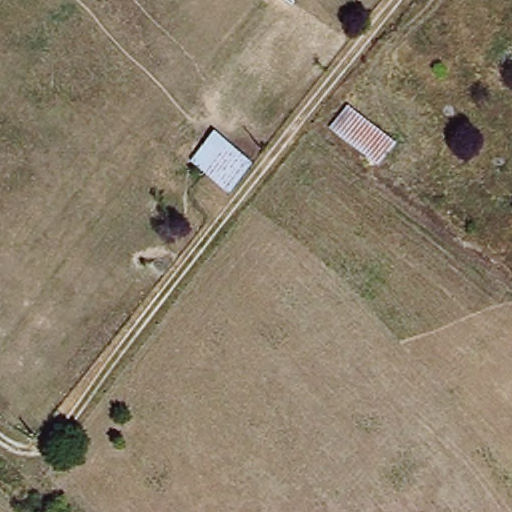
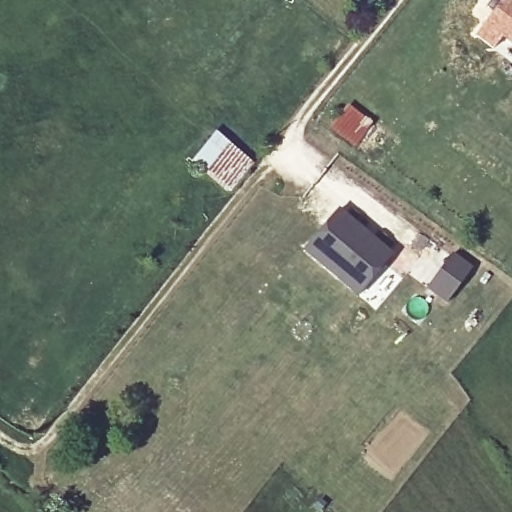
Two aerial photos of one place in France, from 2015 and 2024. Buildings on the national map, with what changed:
new [(512,0),(512,59),(480,37),(505,0),(512,0)]
unchanged [(351,105),(400,142),(381,167),(334,129),(351,105)]
unchanged [(217,130),(256,163),(232,193),(193,162),(217,130)]
new [(339,211),(395,255),(364,295),(308,251),(339,211)]

